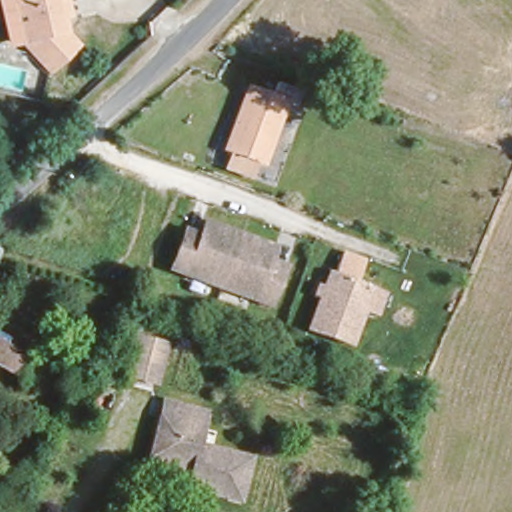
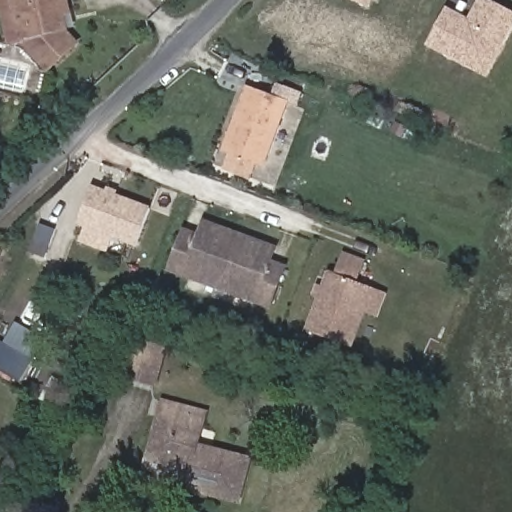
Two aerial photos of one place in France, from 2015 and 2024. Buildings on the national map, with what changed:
unchanged [(67,6),(60,7),(65,29),(76,39),(48,66),(25,43),(9,46),(0,11),(0,0),(66,0),(67,6)]
new [(370,8),(355,0),(374,0),(370,8)]
new [(469,17),(478,0),(492,0),(512,10),(512,30),(484,76),(427,46),(447,7),(469,17)]
unchanged [(217,156),(241,92),(288,110),(283,124),(274,120),(257,170),(252,181),(213,166),(217,156)]
new [(91,185),(117,191),(116,197),(150,207),(138,246),(79,226),(91,185)]
unchanged [(172,236),(188,241),(195,220),(266,246),(258,267),(273,272),(261,305),(160,267),(172,236)]
unchanged [(330,274),(335,276),(342,257),(365,266),(358,285),(373,291),(385,295),(379,312),(376,319),(364,314),(351,348),(308,332),(322,296),(330,274)]
unchanged [(127,333),(158,340),(149,378),(118,372),(127,333)]
unchanged [(20,373),(0,363),(0,336),(30,349),(20,373)]
unchanged [(153,402),(197,412),(189,445),(239,459),(229,503),(184,490),(188,473),(183,472),(184,469),(140,459),(153,402)]

